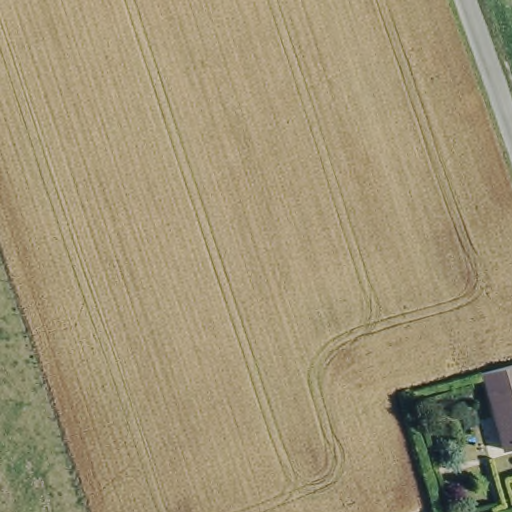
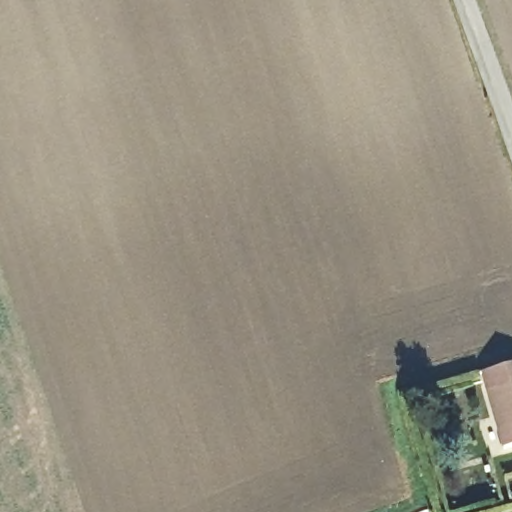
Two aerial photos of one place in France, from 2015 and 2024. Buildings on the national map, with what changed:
unchanged [(504,449),(482,372),(512,364),(512,447),(504,449)]

